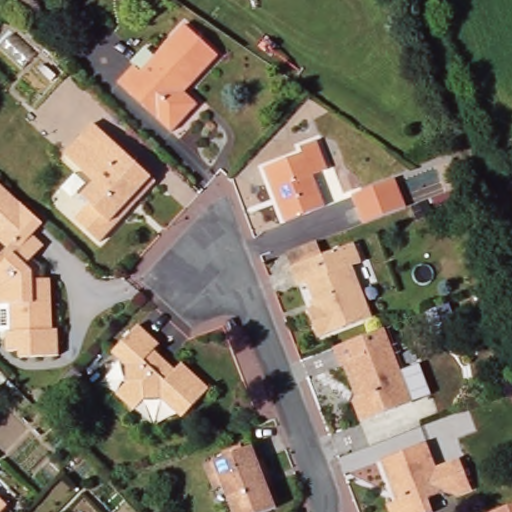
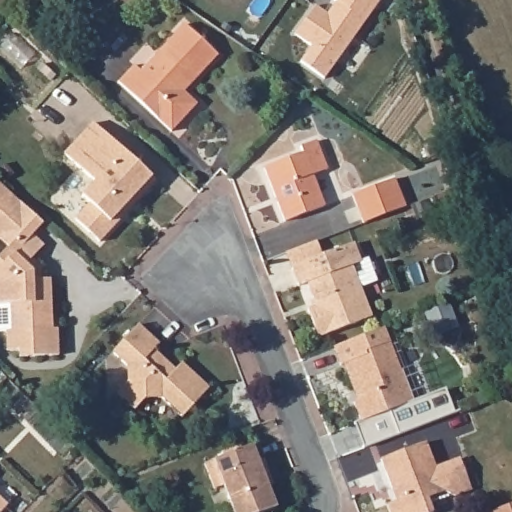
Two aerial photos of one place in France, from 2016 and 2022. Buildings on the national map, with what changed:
new [(354,40),(358,44),(347,65),(340,61),(327,79),(301,62),(312,47),(295,37),(315,6),(328,14),(336,3),(332,1),(332,0),(380,0),(354,40)]
unchanged [(134,65),(141,72),(185,24),(219,55),(184,92),(198,104),(172,132),(118,82),(134,65)]
unchanged [(156,181),(138,200),(133,198),(127,205),(129,210),(100,242),(76,220),(91,205),(82,197),(95,183),(65,155),(94,123),(156,181)]
unchanged [(325,206),(285,222),(264,168),(304,152),(302,147),(317,141),(328,170),(313,175),(325,206)]
new [(395,179),(406,207),(364,224),(353,195),(395,179)]
unchanged [(18,351),(6,351),(6,333),(13,332),(11,306),(0,306),(0,256),(6,249),(0,243),(0,184),(44,224),(32,239),(43,248),(32,260),(43,272),(43,280),(50,280),(52,332),(57,332),(58,357),(19,359),(18,351)]
unchanged [(352,266),(372,317),(319,337),(308,309),(317,306),(308,282),(299,286),(292,267),(293,267),(287,252),(316,242),(322,256),(354,243),(362,262),(352,266)]
unchanged [(210,388),(183,418),(162,398),(146,399),(135,411),(118,395),(128,383),(127,367),(112,353),(139,325),(160,344),(155,350),(176,370),(182,363),(210,388)]
unchanged [(341,366),(335,347),(385,328),(412,403),(361,422),(353,398),(356,397),(345,365),(341,366)]
unchanged [(426,442),(436,467),(460,458),(472,490),(455,496),(445,492),(428,498),(433,512),(391,512),(388,504),(397,501),(393,488),(381,458),(426,442)]
unchanged [(234,512),(224,486),(215,490),(205,463),(253,445),(258,460),(263,458),(270,476),(274,485),(269,487),(277,507),(265,512),(234,512)]
unchanged [(2,512),(0,512),(0,499),(7,506),(2,512)]
unchanged [(491,512),(512,504),(512,512),(491,512)]

